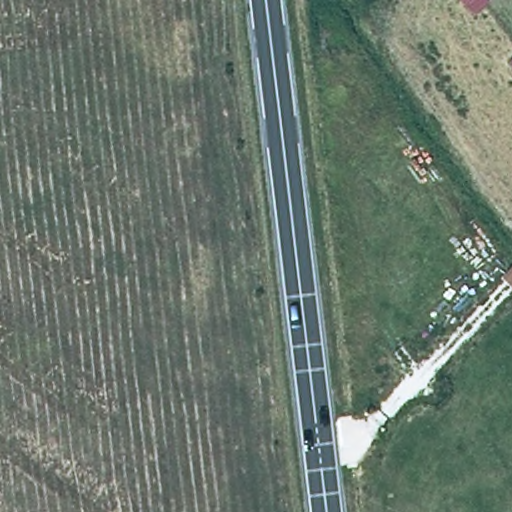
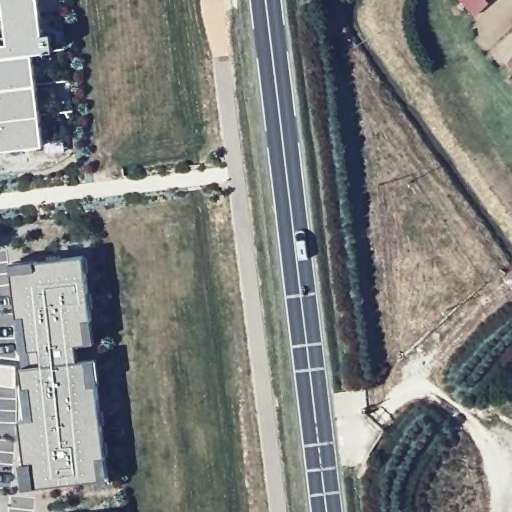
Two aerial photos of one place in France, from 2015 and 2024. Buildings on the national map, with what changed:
new [(6,19),(4,0),(39,0),(40,15),(6,19)]
new [(6,19),(40,15),(43,34),(52,33),(55,51),(33,54),(0,58),(0,44),(9,43),(6,19)]
new [(37,85),(0,89),(0,58),(33,54),(37,85)]
new [(40,116),(0,121),(0,89),(37,85),(40,116)]
new [(44,148),(1,153),(0,145),(0,121),(40,116),(44,148)]
new [(109,479),(27,488),(19,422),(27,421),(8,263),(84,255),(109,479)]
new [(15,387),(0,385),(0,365),(15,367),(15,387)]

